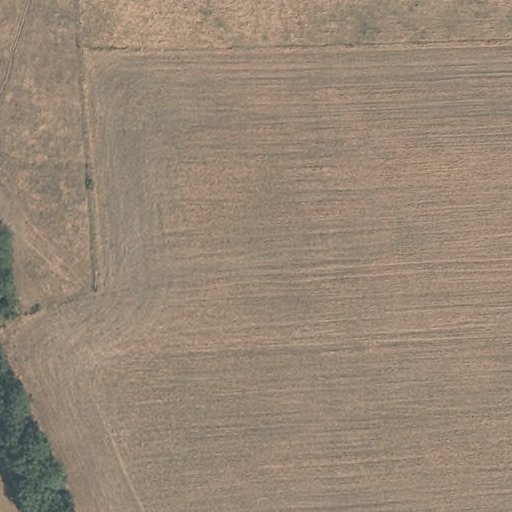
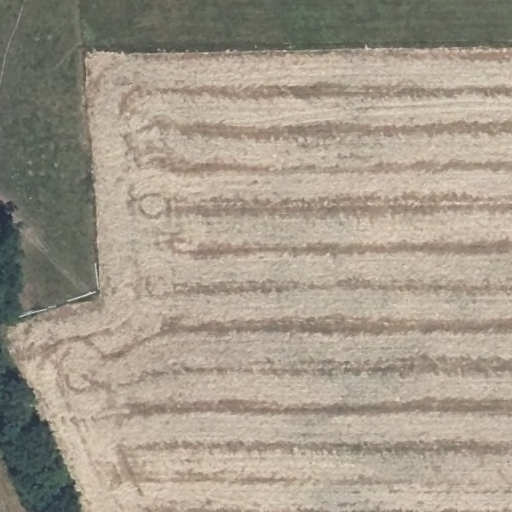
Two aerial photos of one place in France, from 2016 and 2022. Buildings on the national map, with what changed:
[]

